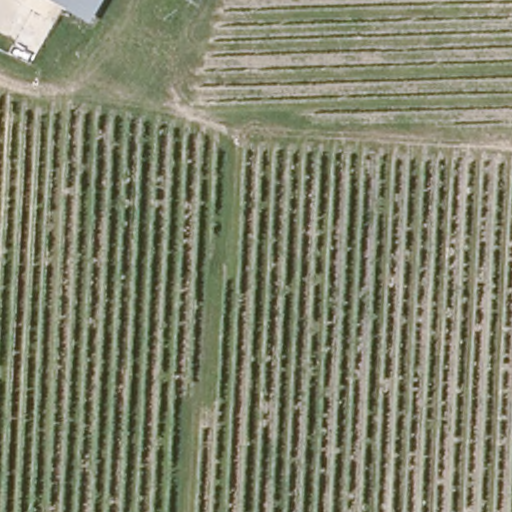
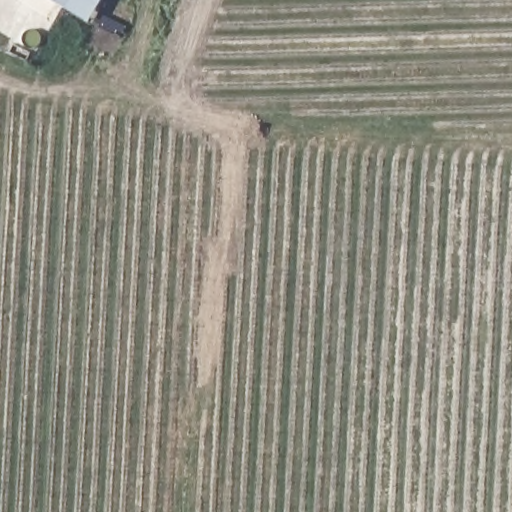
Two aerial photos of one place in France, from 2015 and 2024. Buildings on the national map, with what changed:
unchanged [(66,6),(56,0),(70,0),(66,6)]
unchanged [(96,8),(91,18),(66,6),(70,0),(101,0),(96,8)]

